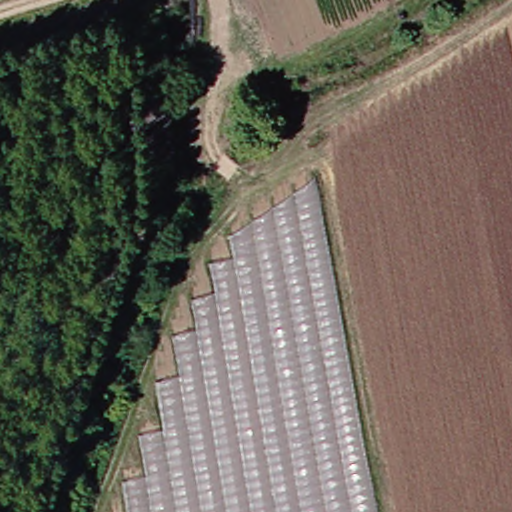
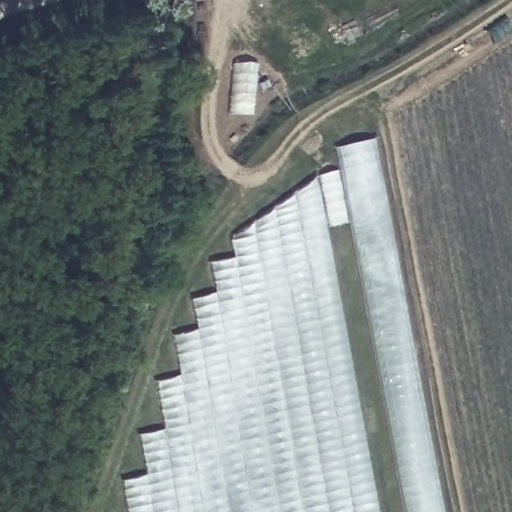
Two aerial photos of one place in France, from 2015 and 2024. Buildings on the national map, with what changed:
new [(441,512),(403,512),(332,149),(371,140),(441,512)]
unchanged [(317,173),(379,512),(113,512),(233,229),(317,173)]

